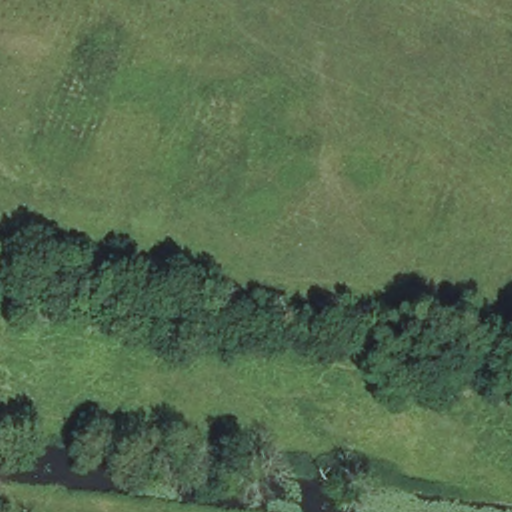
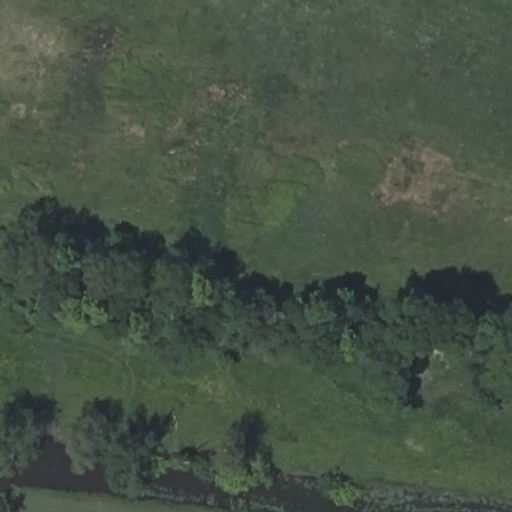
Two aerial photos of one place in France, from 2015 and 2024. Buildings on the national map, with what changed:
[]

